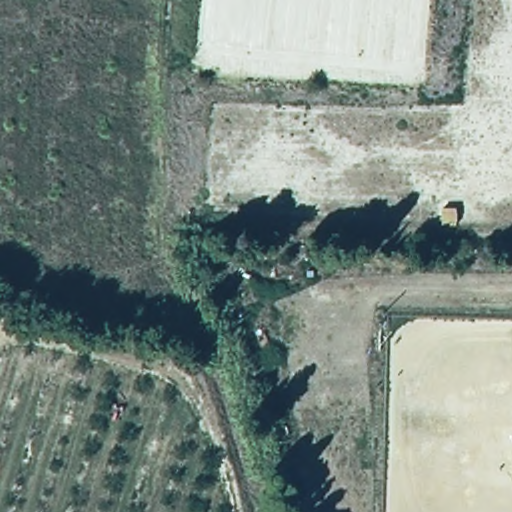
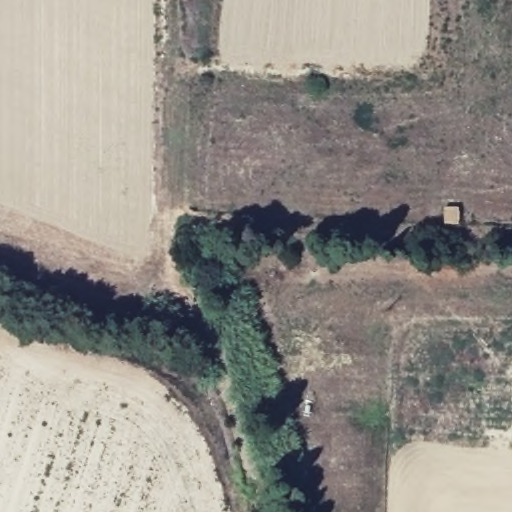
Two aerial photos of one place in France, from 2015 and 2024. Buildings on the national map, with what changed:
unchanged [(458,204),(458,222),(442,222),(441,205),(458,204)]

